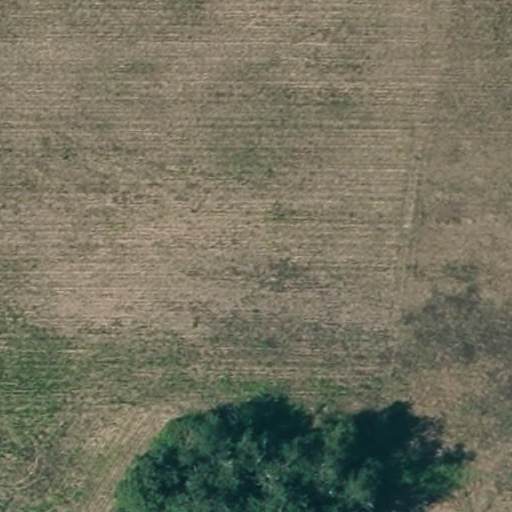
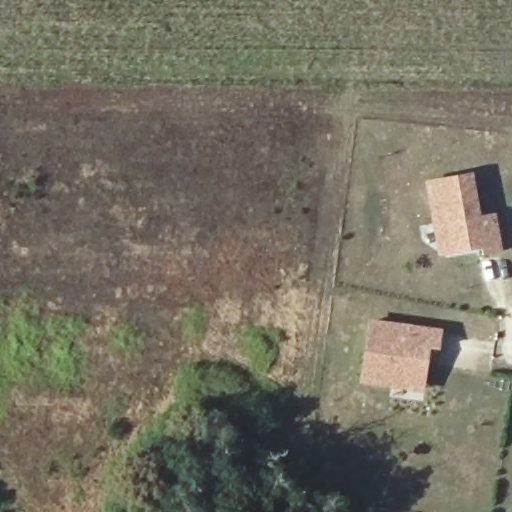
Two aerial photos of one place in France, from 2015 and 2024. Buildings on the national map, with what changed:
new [(504,251),(483,255),(481,247),(441,256),(426,180),(473,171),(482,216),(496,212),(504,251)]
new [(439,347),(430,346),(423,391),(361,382),(370,318),(443,328),(439,347)]

